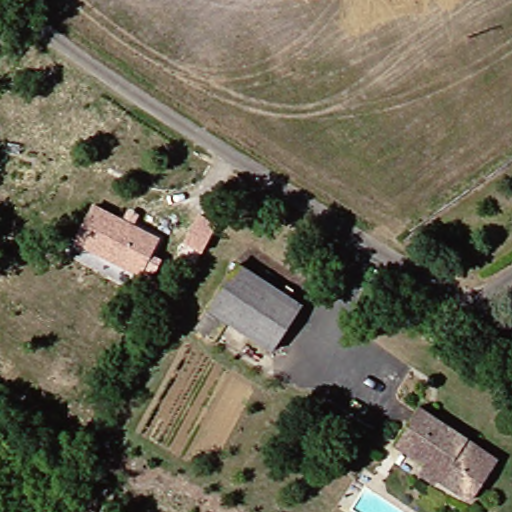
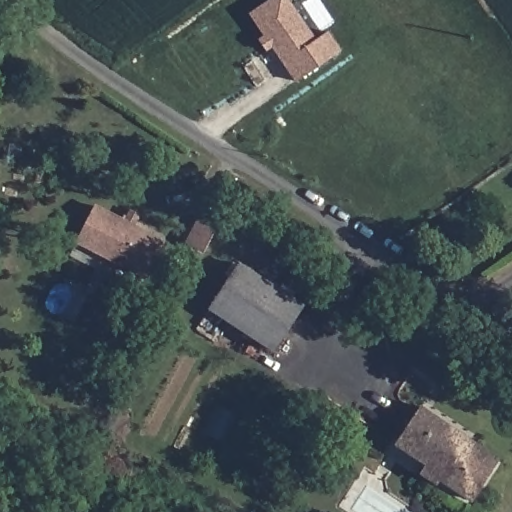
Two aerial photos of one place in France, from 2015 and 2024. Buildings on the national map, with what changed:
new [(329,31),(342,50),(296,82),(248,14),(268,0),(289,0),(316,39),(329,31)]
unchanged [(94,203),(161,237),(143,277),(74,241),(94,203)]
unchanged [(202,213),(224,222),(206,254),(186,244),(202,213)]
unchanged [(310,302),(283,348),(219,310),(249,264),(310,302)]
unchanged [(426,472),(433,465),(404,446),(430,405),(474,438),(504,458),(500,465),(476,500),(445,480),(443,483),(426,472)]

